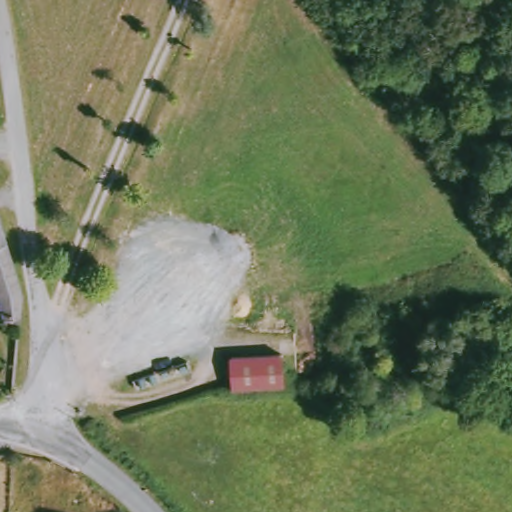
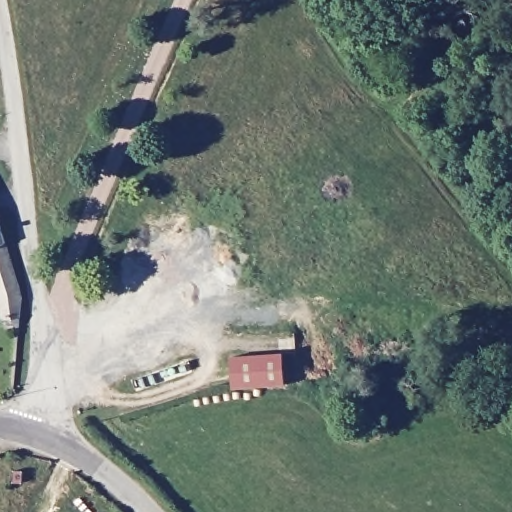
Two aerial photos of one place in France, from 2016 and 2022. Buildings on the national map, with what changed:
unchanged [(16,330),(0,281),(0,212),(2,215),(28,301),(28,328),(16,330)]
unchanged [(238,355),(290,355),(292,390),(238,390),(238,355)]

